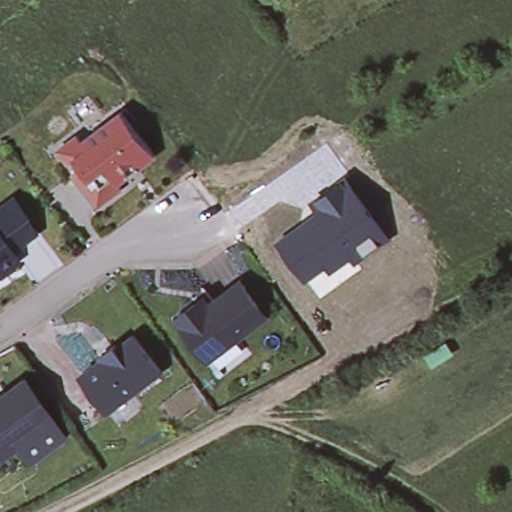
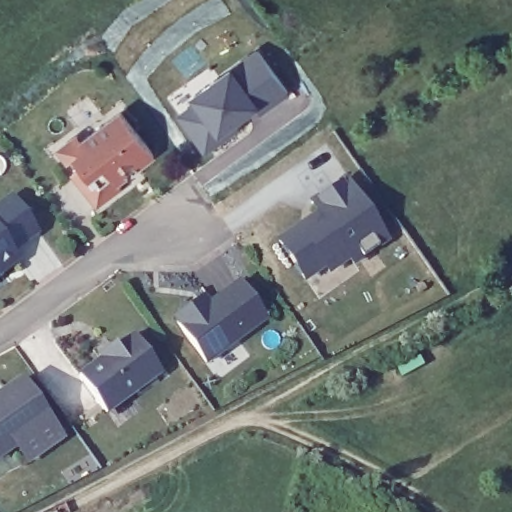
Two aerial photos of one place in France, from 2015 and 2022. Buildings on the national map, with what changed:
new [(200,102),(195,96),(259,51),(289,93),(260,113),(256,107),(235,121),(239,127),(207,150),(182,115),(200,102)]
unchanged [(118,184),(122,189),(98,207),(73,174),(82,168),(75,159),(69,163),(59,150),(78,136),(82,142),(122,112),(155,157),(118,184)]
unchanged [(317,212),(311,201),(341,183),(339,179),(347,174),(390,240),(354,265),(350,259),(330,274),(326,267),(306,281),(277,240),(317,212)]
unchanged [(7,193),(33,227),(6,246),(13,255),(0,264),(0,199),(7,193)]
unchanged [(267,318),(207,362),(178,323),(179,315),(195,304),(203,297),(209,305),(240,282),(267,318)]
unchanged [(105,407),(81,375),(102,358),(100,356),(115,344),(118,348),(134,335),(162,371),(131,395),(109,411),(105,407)]
unchanged [(29,461),(17,444),(0,456),(0,396),(24,379),(52,420),(63,437),(29,461)]

